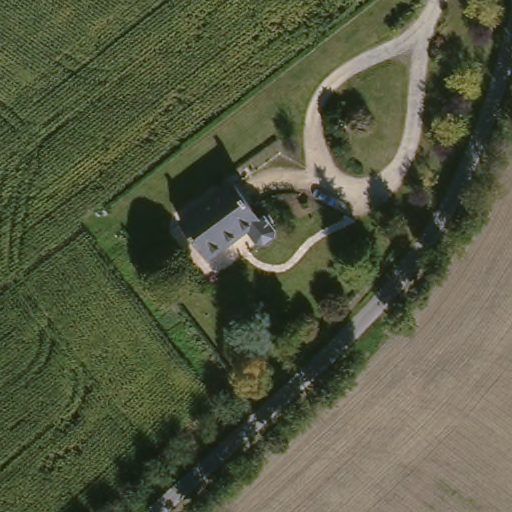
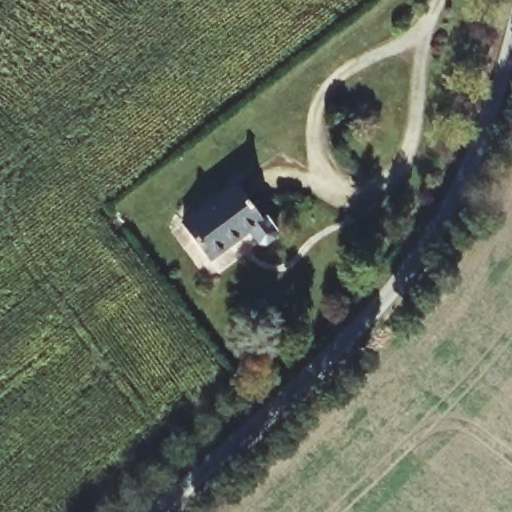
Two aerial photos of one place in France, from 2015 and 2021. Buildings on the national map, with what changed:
unchanged [(257,226),(262,222),(273,236),(272,243),(261,251),(254,250),(244,236),(209,262),(180,226),(229,189),(257,226)]

